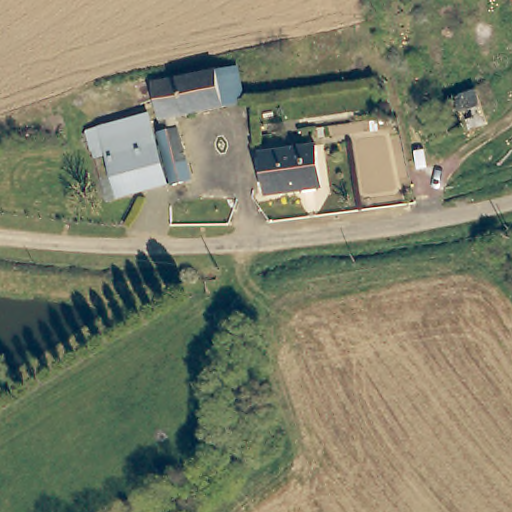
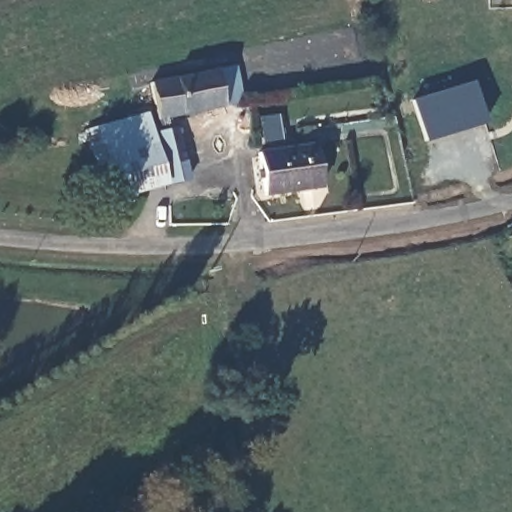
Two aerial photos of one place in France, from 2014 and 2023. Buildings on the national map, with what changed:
unchanged [(131,191),(99,197),(95,171),(107,170),(97,122),(135,114),(162,108),(157,84),(222,64),(232,100),(166,120),(181,200),(153,205),(134,208),(131,191)]
demolished [(477,110),(480,123),(425,136),(416,105),(433,101),(472,91),(477,110)]
unchanged [(314,148),(318,187),(277,193),(265,195),(260,156),(265,155),(314,148)]

